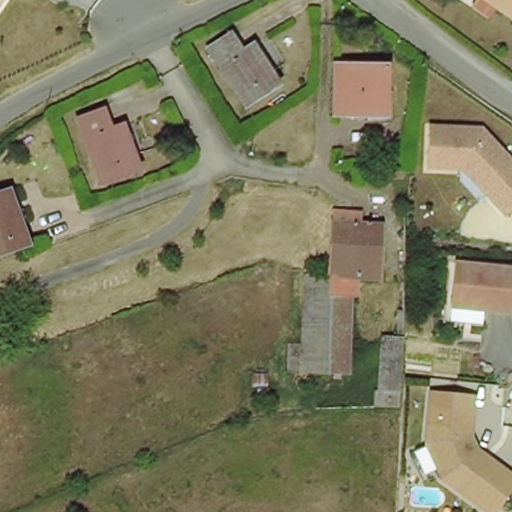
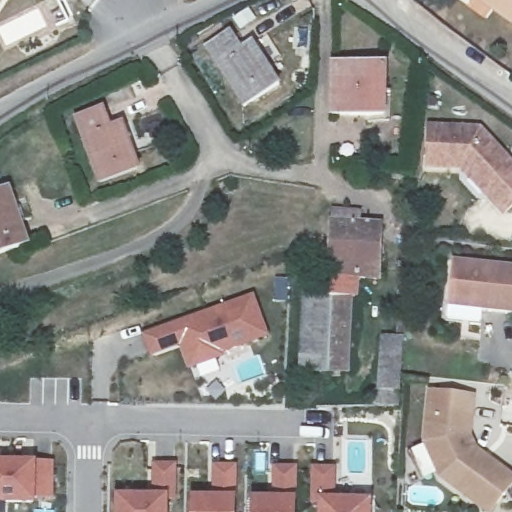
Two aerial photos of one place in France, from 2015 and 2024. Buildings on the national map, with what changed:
unchanged [(490,0),(512,0),(512,14),(490,0)]
unchanged [(222,32),(239,52),(250,42),(279,80),(244,104),(202,47),(222,32)]
unchanged [(384,114),(333,112),(333,64),(383,62),(384,114)]
unchanged [(142,166),(102,181),(77,121),(102,109),(109,126),(123,122),(142,166)]
unchanged [(430,125),(482,126),(512,158),(512,210),(504,217),(464,170),(429,169),(430,125)]
unchanged [(0,193),(1,192),(7,190),(21,221),(30,243),(0,256),(0,193)]
unchanged [(378,277),(352,277),(349,373),(300,372),(305,275),(329,274),(332,225),(332,203),(360,206),(360,225),(380,226),(378,277)]
unchanged [(459,262),(512,266),(512,311),(488,310),(487,325),(455,322),(459,262)]
new [(254,292),(269,335),(189,370),(181,347),(151,358),(142,334),(254,292)]
unchanged [(382,340),(405,340),(402,408),(379,408),(382,340)]
unchanged [(475,440),(485,441),(485,460),(512,481),(512,494),(497,512),(491,512),(429,463),(435,390),(478,395),(475,440)]
new [(52,497),(35,497),(35,500),(0,500),(0,458),(54,458),(52,497)]
new [(152,460),(177,461),(175,500),(166,500),(166,512),(112,512),(112,492),(152,492),(152,460)]
new [(236,512),(186,512),(187,492),(211,493),(211,463),(237,464),(236,512)]
new [(295,512),(248,512),(248,495),(273,494),(272,464),(296,465),(295,512)]
new [(335,496),(370,497),(370,512),(315,512),(316,504),(310,504),(311,465),(336,465),(335,496)]

